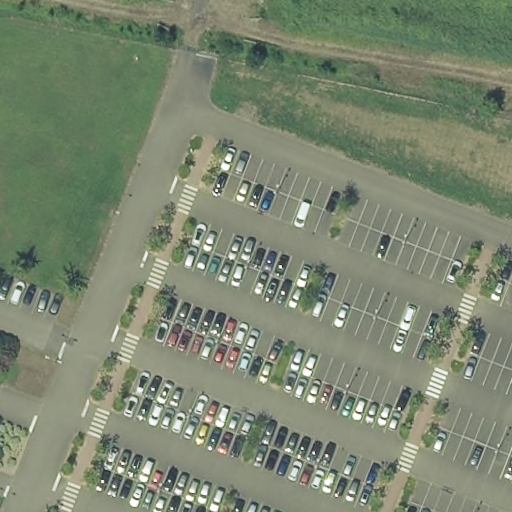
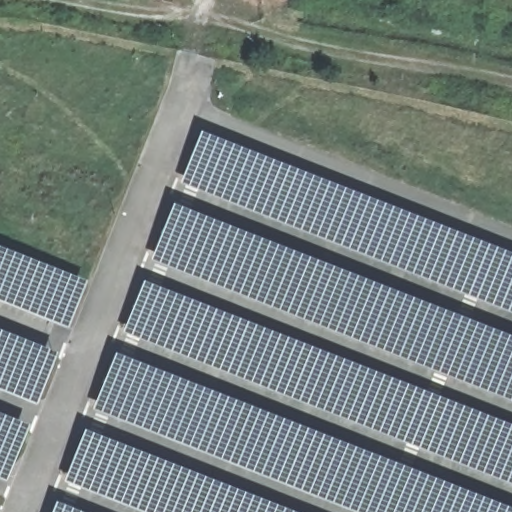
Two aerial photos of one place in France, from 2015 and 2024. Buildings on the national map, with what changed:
new [(512,315),(180,184),(199,131),(512,255),(512,315)]
new [(512,402),(150,260),(170,205),(512,339),(512,402)]
new [(87,281),(68,329),(0,303),(0,247),(87,281)]
new [(512,487),(122,334),(141,281),(512,427),(512,487)]
new [(58,353),(37,407),(0,393),(0,331),(58,353)]
new [(512,512),(353,512),(92,410),(114,354),(512,511),(512,512)]
new [(29,425),(7,484),(0,482),(0,414),(29,425)]
new [(64,483),(82,430),(290,512),(138,512),(64,483)]
new [(54,502),(78,512),(51,512),(54,502)]

